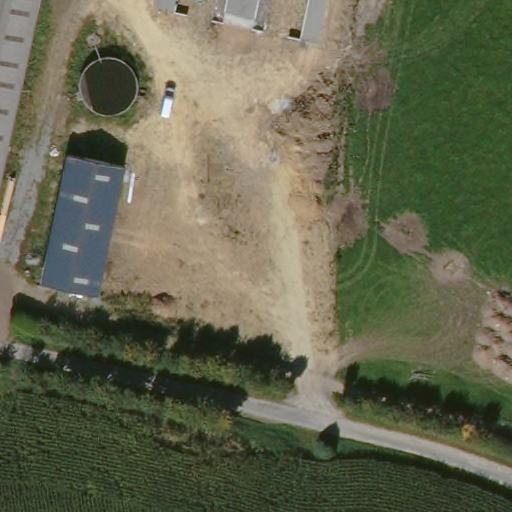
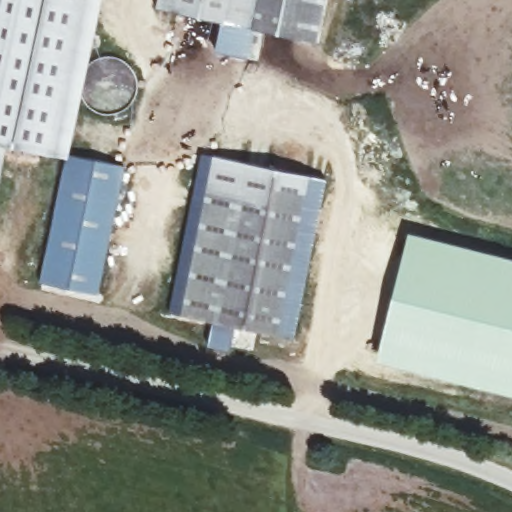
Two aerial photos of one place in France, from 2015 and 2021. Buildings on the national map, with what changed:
unchanged [(0,149),(0,0),(35,0),(0,149)]
new [(160,0),(313,0),(305,35),(160,2),(160,0)]
new [(204,146),(327,174),(291,333),(233,319),(228,342),(206,337),(211,314),(168,305),(204,146)]
unchanged [(67,154),(125,166),(98,294),(41,281),(67,154)]
new [(512,266),(512,373),(384,338),(411,238),(512,266)]

